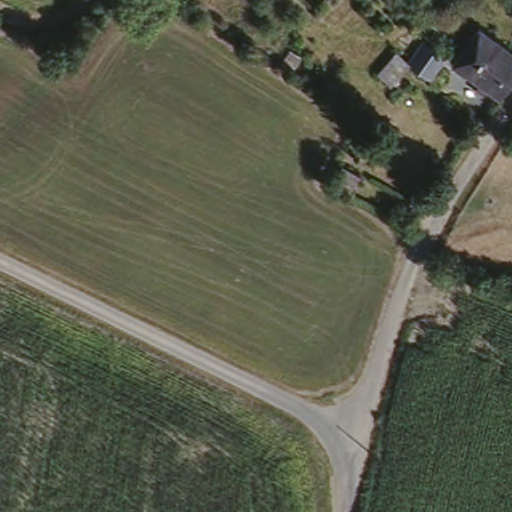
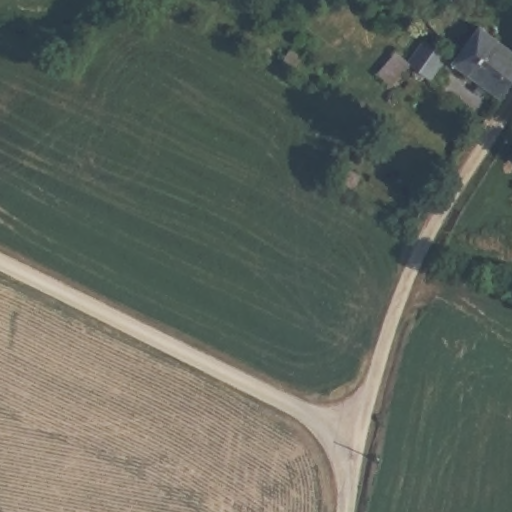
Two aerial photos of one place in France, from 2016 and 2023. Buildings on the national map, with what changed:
unchanged [(489,89),(485,96),(476,90),(481,84),(452,64),(480,27),(512,49),(512,84),(502,98),(489,89)]
unchanged [(448,56),(431,81),(410,64),(426,41),(448,56)]
unchanged [(381,76),(398,54),(410,64),(395,86),(381,76)]

